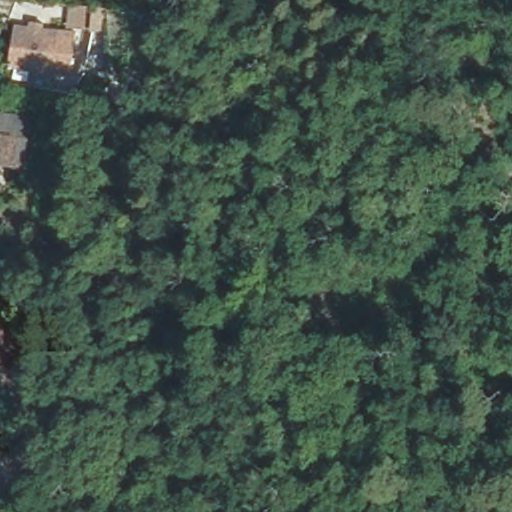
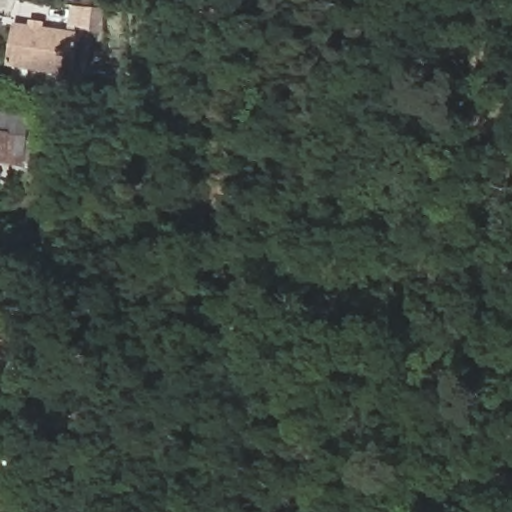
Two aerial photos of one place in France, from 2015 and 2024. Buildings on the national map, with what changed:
unchanged [(32,69),(30,81),(9,79),(12,21),(70,27),(67,74),(32,69)]
unchanged [(0,162),(0,111),(12,112),(29,115),(26,132),(22,159),(21,165),(0,162)]
unchanged [(16,405),(19,401),(3,392),(12,375),(0,368),(0,319),(21,322),(14,337),(37,350),(28,369),(38,374),(39,397),(33,413),(16,405)]

